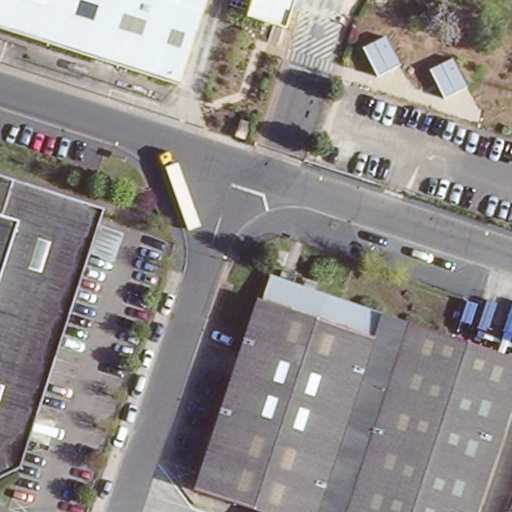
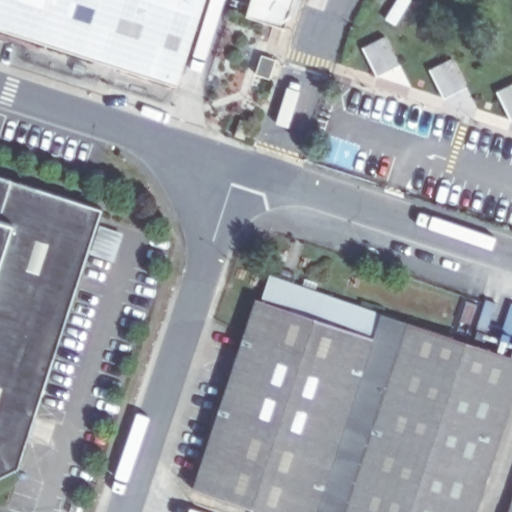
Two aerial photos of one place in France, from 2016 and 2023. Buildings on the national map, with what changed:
unchanged [(0,28),(0,0),(206,0),(178,85),(0,28)]
unchanged [(245,15),(250,0),(291,0),(283,26),(245,15)]
unchanged [(363,49),(383,38),(398,65),(376,76),(363,49)]
unchanged [(429,71),(451,59),(467,88),(443,99),(429,71)]
new [(511,121),(500,90),(512,86),(512,121),(511,121)]
unchanged [(20,177),(32,181),(19,219),(31,223),(45,184),(127,213),(36,473),(0,489),(0,170),(20,177)]
unchanged [(129,233),(143,238),(135,260),(121,256),(129,233)]
unchanged [(192,490),(259,297),(267,300),(274,277),(283,280),(287,270),(299,274),(295,285),(377,314),(310,512),(255,512),(192,490)]
unchanged [(377,314),(410,325),(346,512),(310,512),(377,314)]
unchanged [(410,325),(420,329),(357,512),(346,512),(410,325)]
unchanged [(420,329),(446,338),(387,512),(357,512),(420,329)]
unchanged [(512,361),(512,409),(476,512),(387,512),(446,338),(512,361)]
unchanged [(512,497),(512,512),(507,512),(512,497)]

